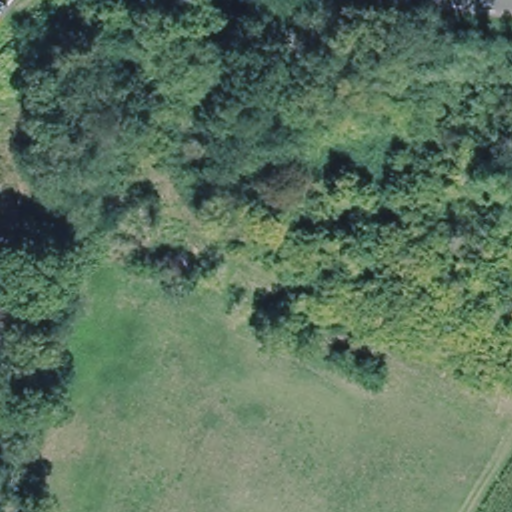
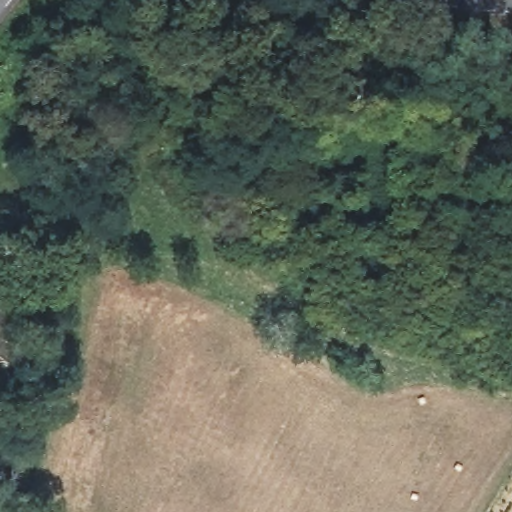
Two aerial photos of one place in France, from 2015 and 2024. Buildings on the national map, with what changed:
[]

